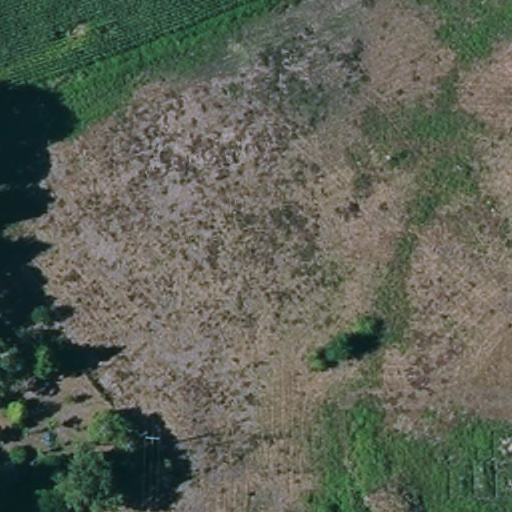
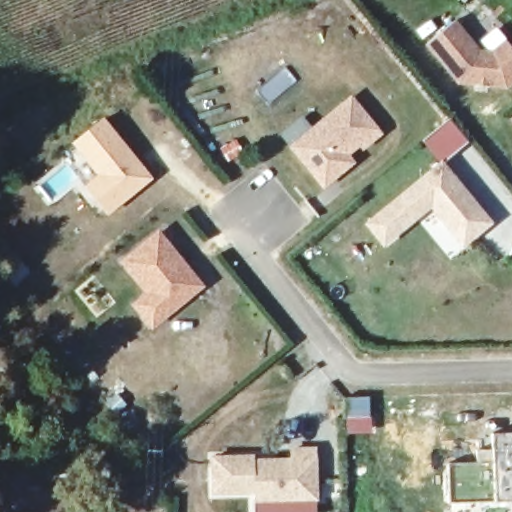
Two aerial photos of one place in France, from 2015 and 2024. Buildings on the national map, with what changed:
new [(477,55),(489,56),(503,43),(512,53),(512,82),(504,89),(457,86),(425,48),(451,25),(477,55)]
new [(324,193),(291,155),(281,144),(300,128),(310,139),(349,106),(375,136),(378,140),(362,153),(348,166),(351,170),(342,178),(324,193)]
new [(83,186),(97,175),(71,142),(103,116),(154,178),(106,215),(83,186)]
new [(362,222),(441,158),(495,223),(463,248),(430,209),(384,248),(362,222)]
new [(159,230),(205,286),(152,329),(130,304),(145,293),(120,262),(159,230)]
new [(368,384),(369,404),(344,405),(343,385),(368,384)]
new [(477,462),(476,450),(494,448),(493,432),(512,431),(512,500),(493,501),(450,502),(448,463),(477,462)]
new [(260,452),(260,457),(298,456),(297,448),(321,447),(322,480),(300,481),(300,497),(262,498),(261,488),(220,490),(220,454),(260,452)]

